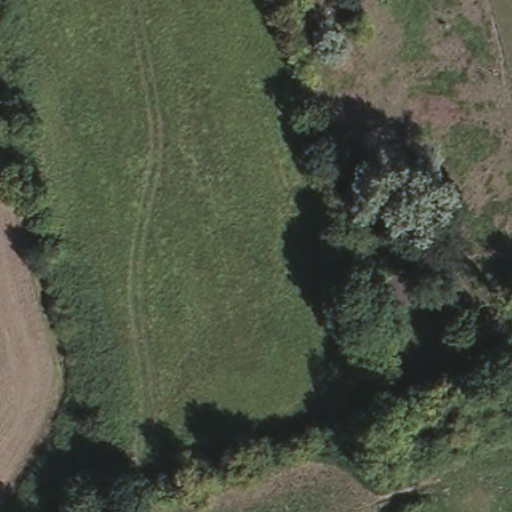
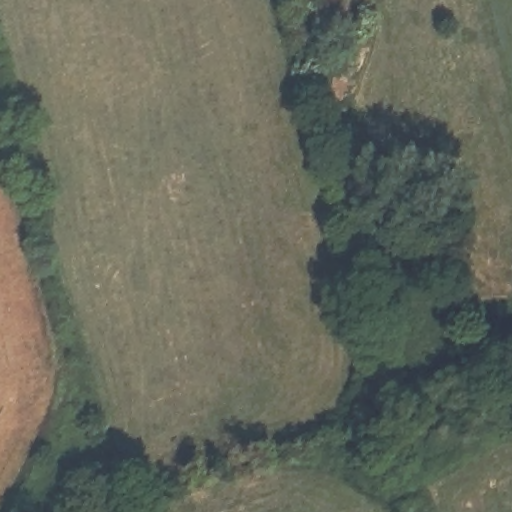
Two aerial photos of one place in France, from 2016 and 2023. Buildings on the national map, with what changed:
unchanged [(393,257),(410,308),(387,316),(368,266),(393,257)]

